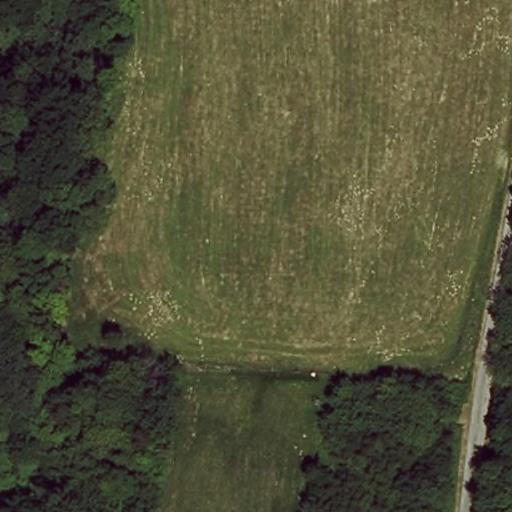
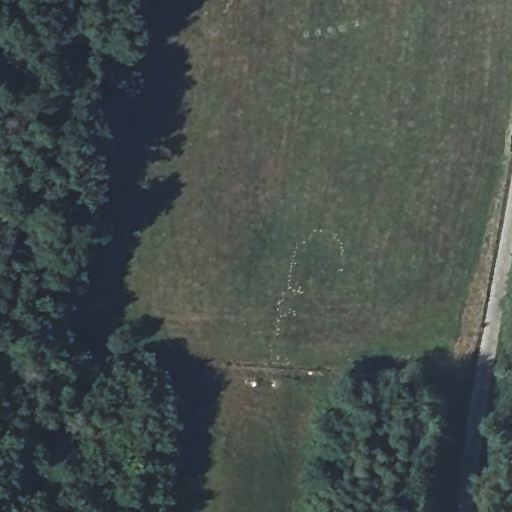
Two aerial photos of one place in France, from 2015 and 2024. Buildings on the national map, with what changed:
unchanged [(30,469),(0,463),(0,449),(6,421),(35,424),(30,469)]

